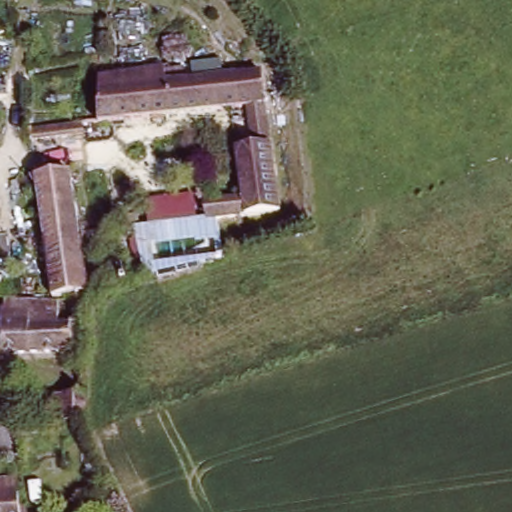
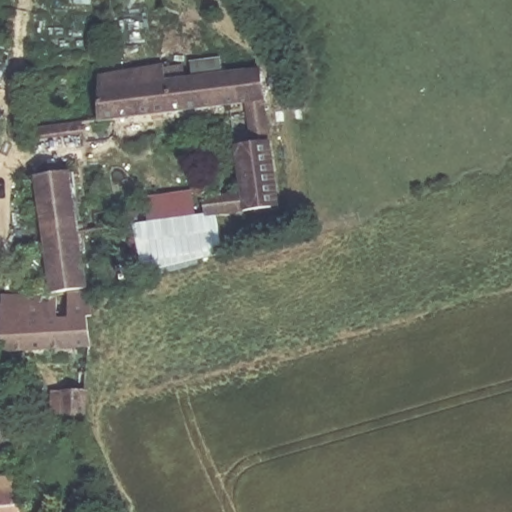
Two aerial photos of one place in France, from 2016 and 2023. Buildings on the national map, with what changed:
unchanged [(208,220),(208,219),(205,199),(242,194),(237,146),(254,144),(249,104),(102,119),(102,86),(103,71),(103,70),(169,64),(170,78),(265,68),(267,82),(282,212),(208,220)]
unchanged [(39,126),(40,135),(32,136),(32,127),(39,126)]
unchanged [(75,292),(70,292),(64,293),(64,291),(50,292),(37,176),(72,172),(80,235),(87,290),(75,292)]
unchanged [(187,223),(152,227),(149,205),(185,201),(187,222),(187,223)]
unchanged [(90,315),(84,315),(87,349),(4,356),(2,309),(2,307),(4,307),(4,298),(50,294),(55,294),(57,317),(70,316),(64,293),(70,292),(75,292),(87,290),(90,315)]
unchanged [(64,414),(57,414),(55,389),(91,386),(90,412),(64,414)]
unchanged [(0,424),(10,424),(10,437),(12,453),(0,454),(0,424)]
unchanged [(0,476),(17,474),(19,512),(0,512),(0,476)]

